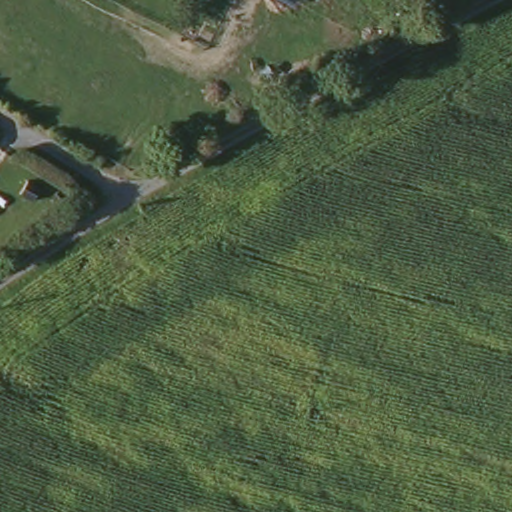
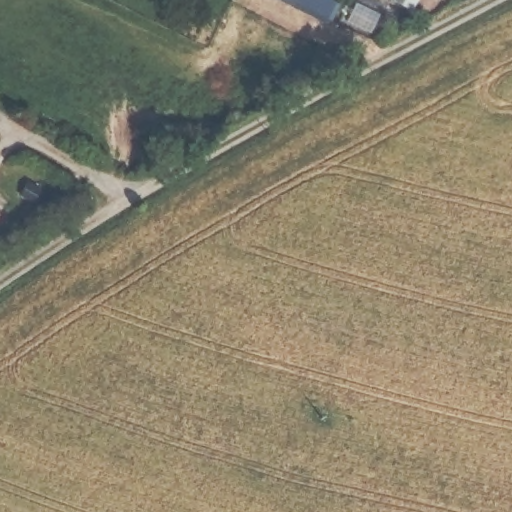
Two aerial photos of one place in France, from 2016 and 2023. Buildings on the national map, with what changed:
new [(331,21),(283,0),(333,0),(339,3),(331,21)]
unchanged [(42,178),(56,185),(49,199),(35,192),(42,178)]

